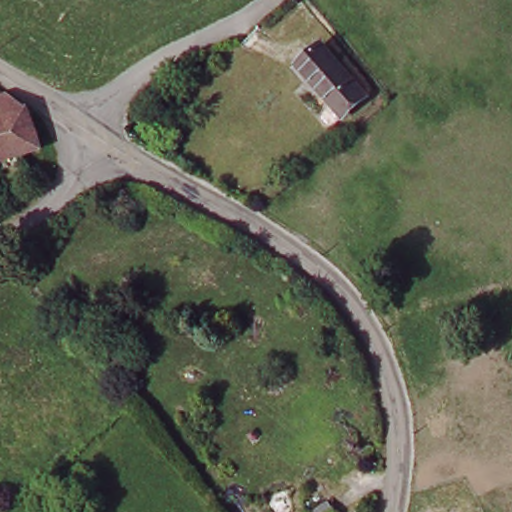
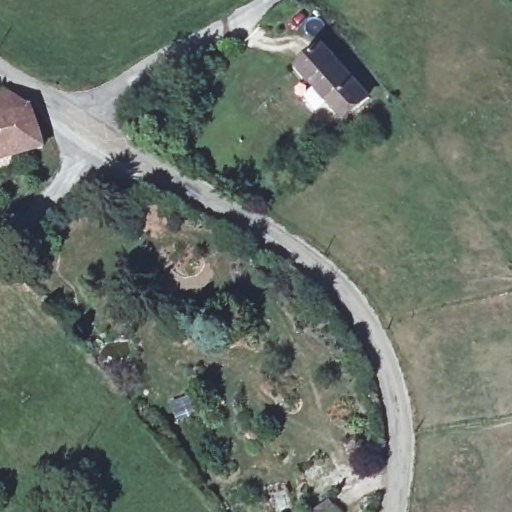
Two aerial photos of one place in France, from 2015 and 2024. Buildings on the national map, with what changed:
unchanged [(369,96),(344,119),(300,66),(324,44),(369,96)]
unchanged [(0,163),(0,96),(6,94),(32,109),(46,151),(0,163)]
unchanged [(324,495),(332,508),(328,512),(302,512),(324,495)]

